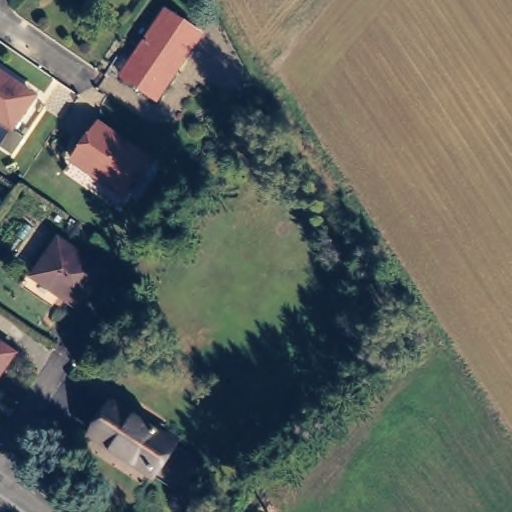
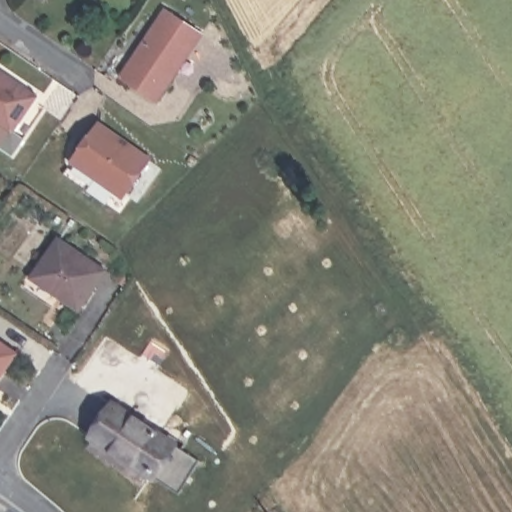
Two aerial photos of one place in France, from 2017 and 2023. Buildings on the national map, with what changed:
unchanged [(200,38),(156,101),(121,76),(166,13),(200,38)]
unchanged [(31,82),(29,85),(43,95),(11,140),(0,132),(0,60),(31,82)]
unchanged [(155,159),(131,194),(103,173),(99,175),(74,157),(101,120),(155,159)]
unchanged [(55,248),(100,282),(77,314),(31,280),(55,248)]
unchanged [(16,359),(0,384),(0,348),(16,359)]
unchanged [(163,476),(105,438),(119,417),(127,406),(183,444),(176,456),(163,476)]

